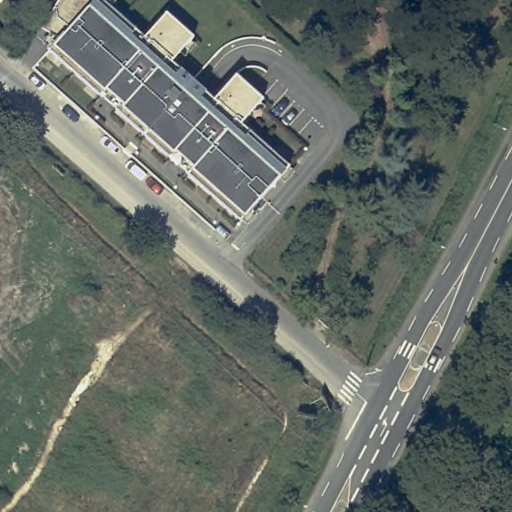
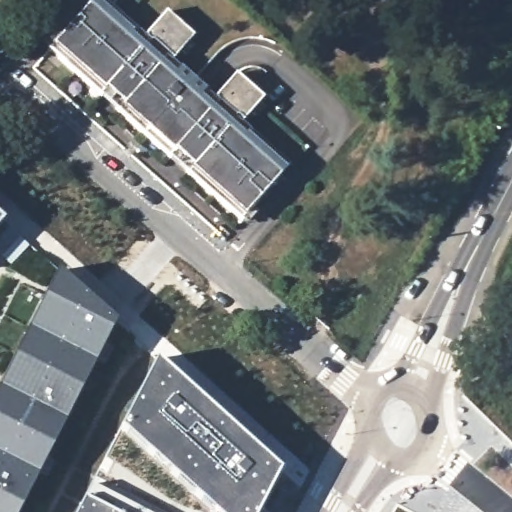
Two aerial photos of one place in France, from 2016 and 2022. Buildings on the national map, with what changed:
unchanged [(167,10),(196,36),(175,59),(214,96),(236,72),(264,98),(242,123),(289,165),(240,223),(47,50),(55,40),(38,30),(57,0),(104,0),(146,35),(167,10)]
new [(57,269),(116,322),(18,512),(0,512),(0,382),(57,269)]
new [(78,496),(72,493),(77,481),(90,486),(155,362),(203,403),(224,421),(215,431),(252,470),(238,484),(249,494),(233,512),(70,512),(78,496)]
new [(291,411),(330,431),(318,455),(279,433),(291,411)]

